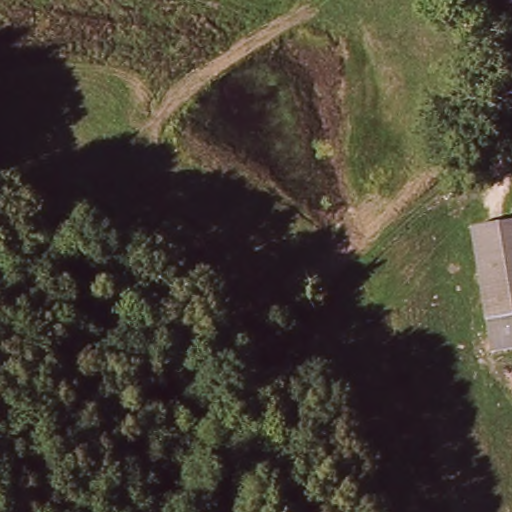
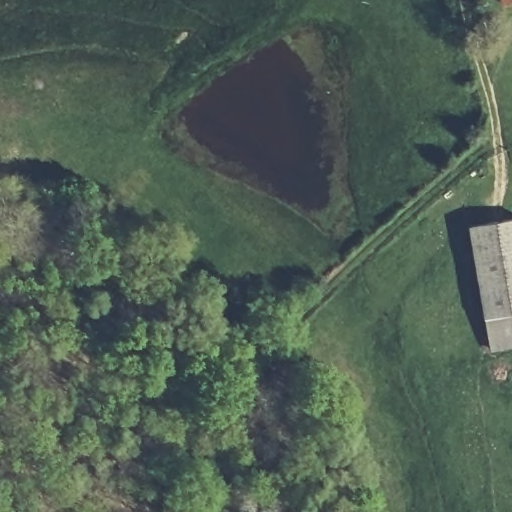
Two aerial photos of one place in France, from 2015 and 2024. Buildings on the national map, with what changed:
unchanged [(510,0),(512,0),(512,4),(510,4),(510,0)]
unchanged [(490,312),(478,227),(512,222),(512,309),(490,312)]
unchanged [(512,309),(512,344),(496,347),(490,312),(512,309)]

